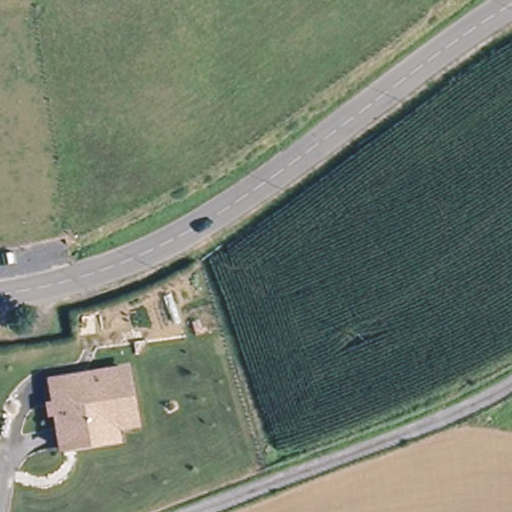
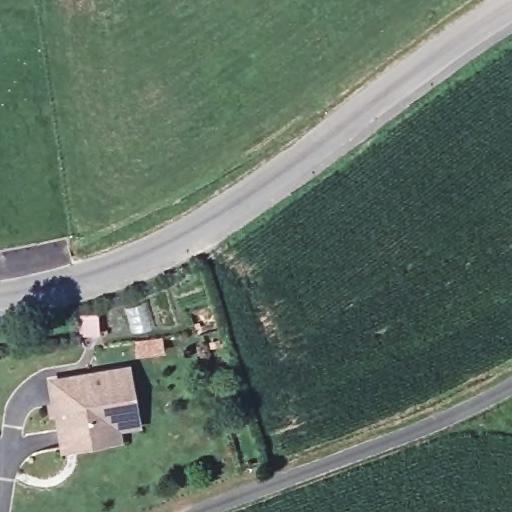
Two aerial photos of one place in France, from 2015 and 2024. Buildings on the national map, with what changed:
unchanged [(56,377),(98,372),(131,368),(134,392),(138,422),(118,425),(120,438),(104,440),(89,442),(77,443),(65,445),(64,435),(56,377)]

